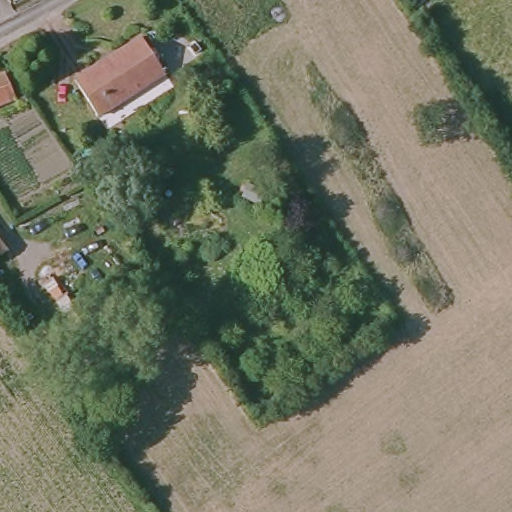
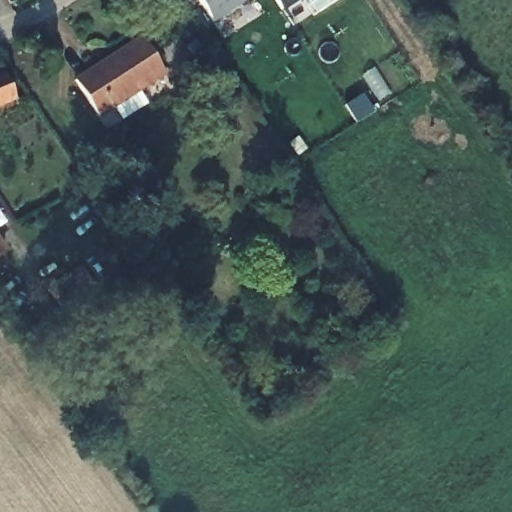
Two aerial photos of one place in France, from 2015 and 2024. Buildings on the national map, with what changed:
new [(199,0),(240,0),(211,19),(199,0)]
new [(275,0),(287,0),(278,5),(275,0)]
unchanged [(142,38),(165,75),(97,117),(74,80),(142,38)]
unchanged [(3,75),(14,100),(0,105),(0,77),(3,75)]

